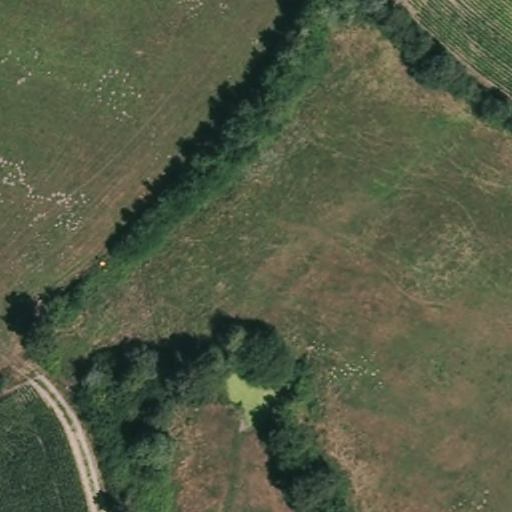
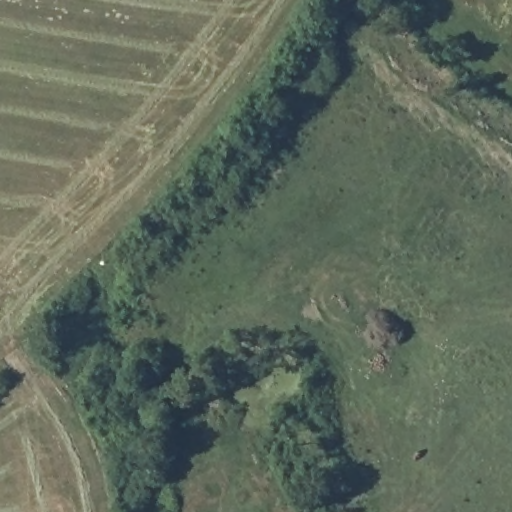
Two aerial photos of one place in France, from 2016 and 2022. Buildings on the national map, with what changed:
[]

